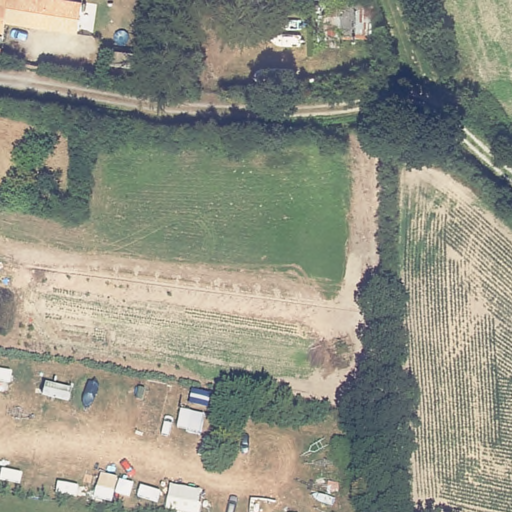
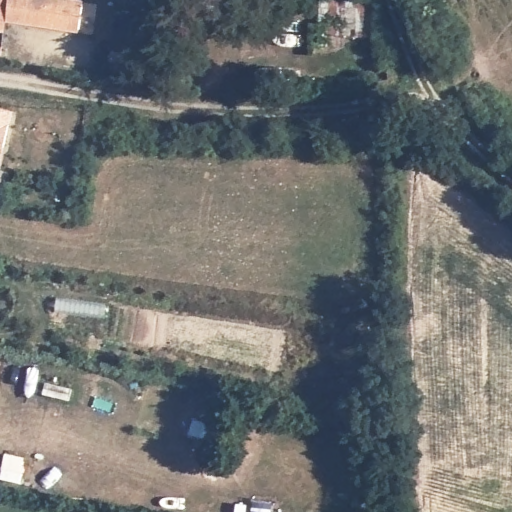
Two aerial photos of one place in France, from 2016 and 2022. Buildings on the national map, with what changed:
unchanged [(0,16),(0,0),(7,0),(4,16),(0,16)]
unchanged [(79,32),(7,21),(6,21),(10,0),(72,0),(84,2),(79,32)]
unchanged [(375,9),(373,40),(327,39),(330,8),(375,9)]
new [(13,111),(1,162),(0,162),(0,108),(13,111)]

